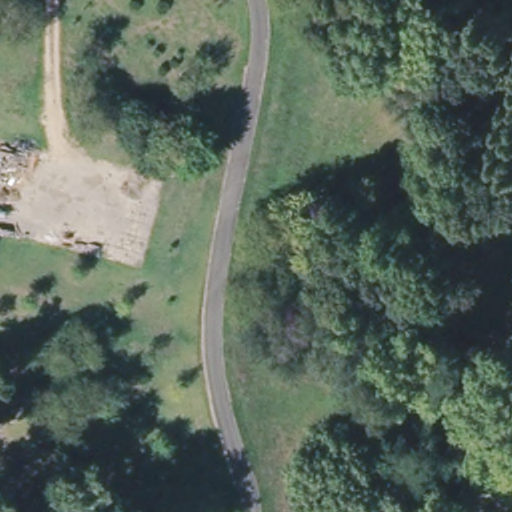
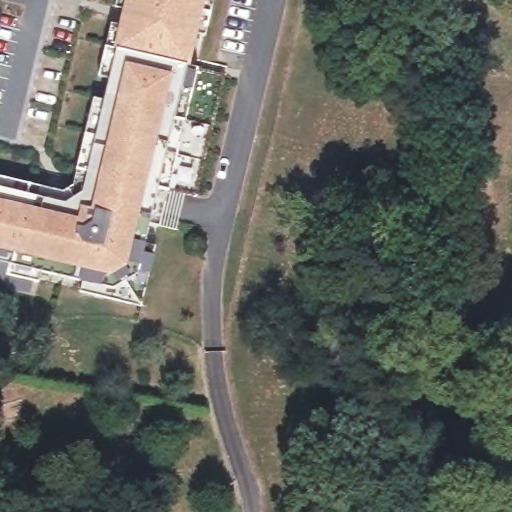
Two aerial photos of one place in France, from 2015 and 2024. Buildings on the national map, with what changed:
new [(0,270),(0,176),(67,190),(94,95),(105,97),(126,0),(204,0),(190,63),(224,74),(196,194),(167,189),(163,217),(152,215),(144,239),(156,245),(140,303),(82,287),(83,279),(41,269),(38,280),(8,272),(0,270)]

